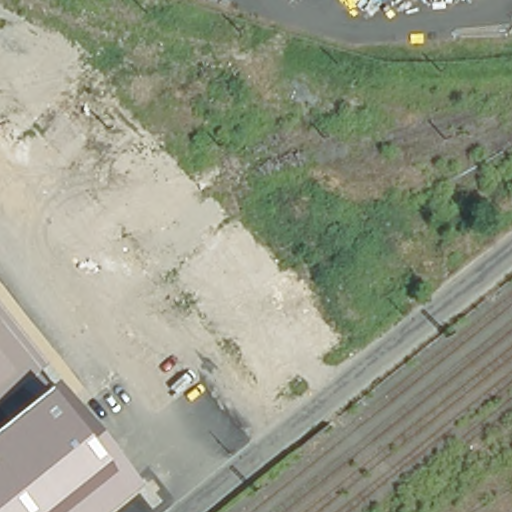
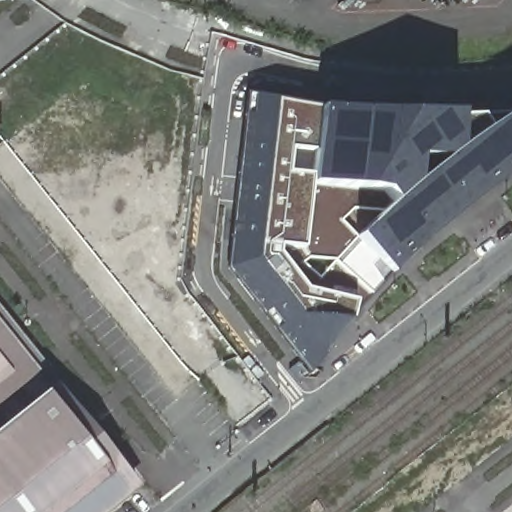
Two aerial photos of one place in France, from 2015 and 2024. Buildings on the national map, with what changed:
new [(461,211),(395,271),(358,300),(351,320),(324,353),(308,371),(228,267),(247,91),(276,98),(320,107),(408,114),(456,115),(480,115),(487,127),(512,110),(512,173),(461,211)]
unchanged [(48,390),(46,392),(0,429),(0,307),(46,364),(35,374),(48,390)]
unchanged [(109,512),(0,512),(0,429),(46,392),(48,390),(58,381),(141,487),(109,512)]

